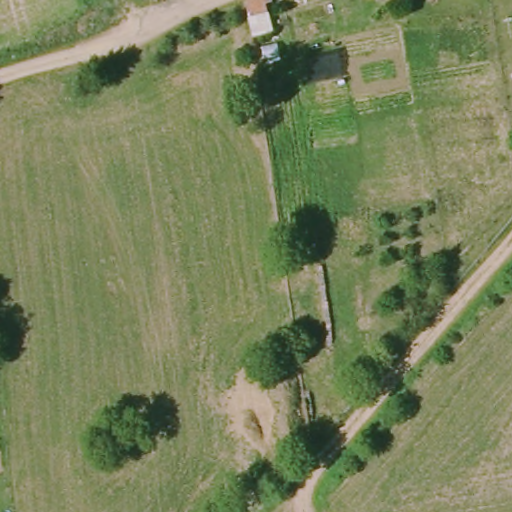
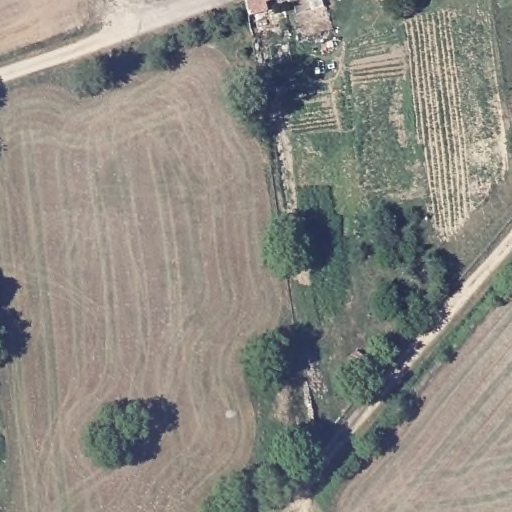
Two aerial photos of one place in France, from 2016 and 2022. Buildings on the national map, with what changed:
unchanged [(273,11),(268,12),(270,23),(249,27),(246,3),(255,0),(272,0),(273,11)]
unchanged [(379,3),(378,0),(401,0),(379,3)]

